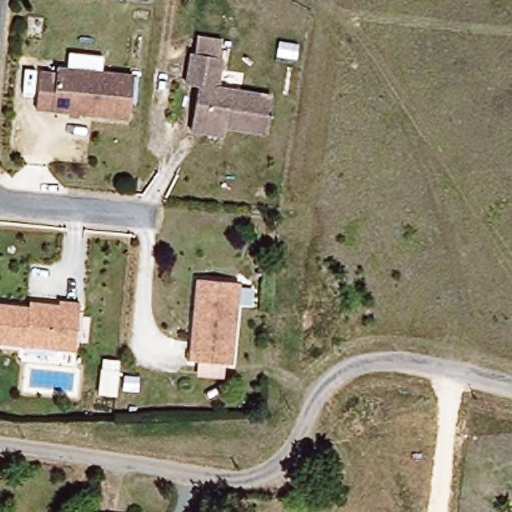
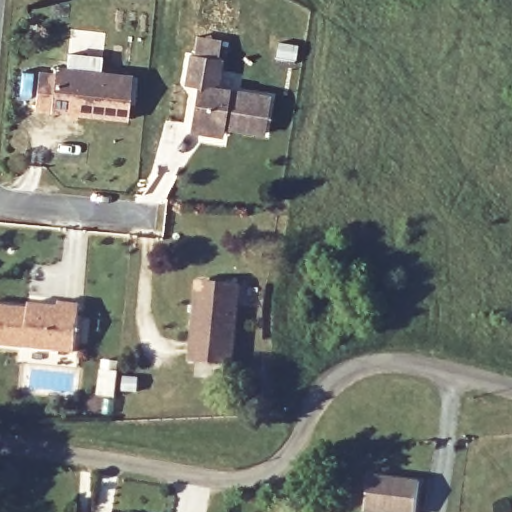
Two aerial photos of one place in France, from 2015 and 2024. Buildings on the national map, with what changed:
unchanged [(189,90),(189,84),(192,60),(222,63),(221,75),(238,76),(235,95),(272,100),(268,136),(228,130),(228,140),(203,136),(193,135),(194,129),(199,91),(189,90)]
unchanged [(56,76),(57,68),(133,75),(129,118),(38,110),(41,75),(56,76)]
unchanged [(229,367),(190,361),(194,329),(197,306),(199,282),(206,282),(240,286),(229,367)]
unchanged [(59,298),(78,300),(73,350),(0,343),(0,303),(26,305),(27,300),(42,302),(58,303),(59,298)]
new [(372,471),(419,479),(414,512),(398,512),(367,507),(372,471)]

